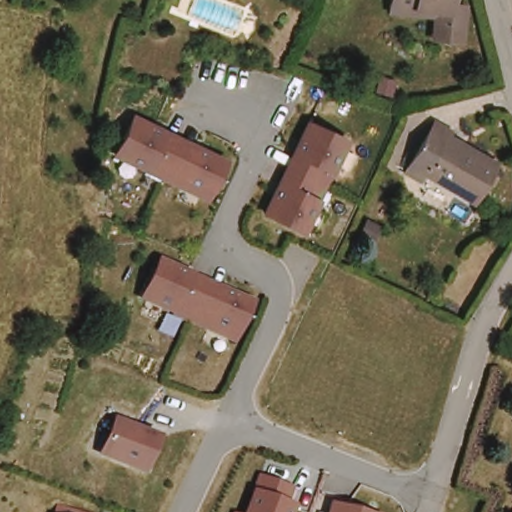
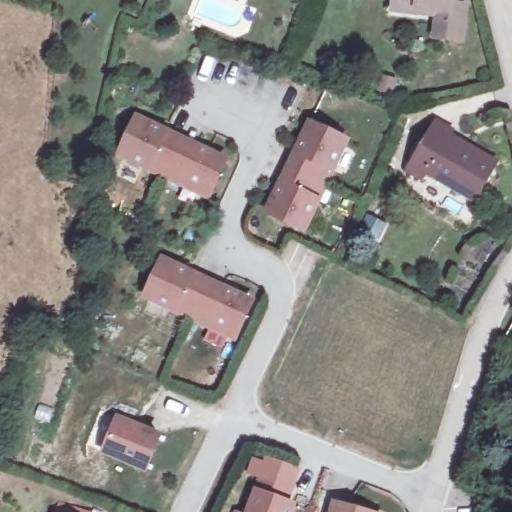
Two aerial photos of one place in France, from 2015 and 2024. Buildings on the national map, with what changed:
unchanged [(418,15),(391,14),(392,0),(451,0),(451,5),(465,6),(464,40),(445,40),(436,39),(437,16),(418,15)]
unchanged [(435,117),(452,127),(449,134),(495,163),(473,200),(427,172),(422,179),(405,168),(435,117)]
unchanged [(214,202),(125,160),(142,122),(172,137),(170,142),(197,155),(200,150),(230,165),(214,202)]
unchanged [(270,219),(285,189),(290,191),(304,162),(299,160),(314,130),(350,147),(307,236),(270,219)]
unchanged [(238,342),(149,300),(165,264),(195,278),(193,283),(224,297),(226,292),(254,306),(238,342)]
unchanged [(105,457),(119,424),(159,440),(145,474),(105,457)]
unchanged [(289,503),(297,506),(295,512),(252,512),(267,477),(295,489),(289,503)]
unchanged [(65,511),(68,512),(65,512),(65,511)]

